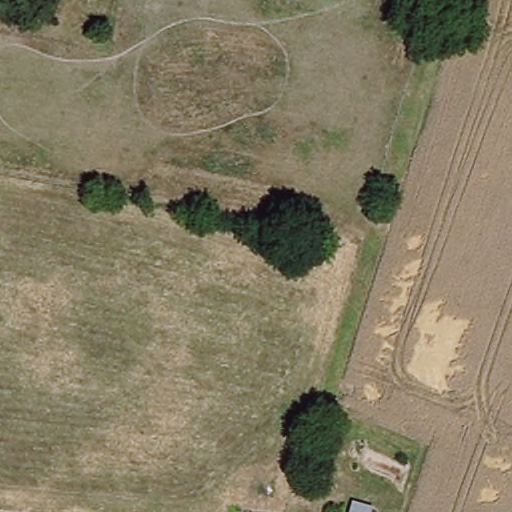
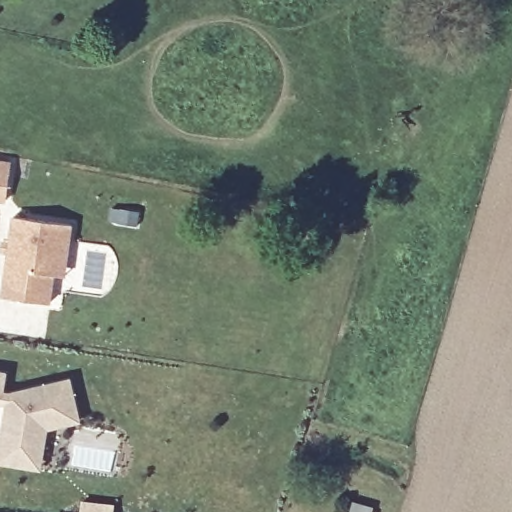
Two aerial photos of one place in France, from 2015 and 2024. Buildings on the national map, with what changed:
new [(9,163),(5,195),(0,194),(0,162),(9,163)]
new [(68,225),(66,243),(62,276),(51,275),(47,303),(0,298),(11,217),(68,225)]
new [(24,466),(0,463),(0,373),(4,374),(1,393),(8,394),(68,380),(79,420),(46,429),(43,449),(40,469),(24,466)]
unchanged [(372,510),(371,512),(350,512),(352,503),(372,510)]

